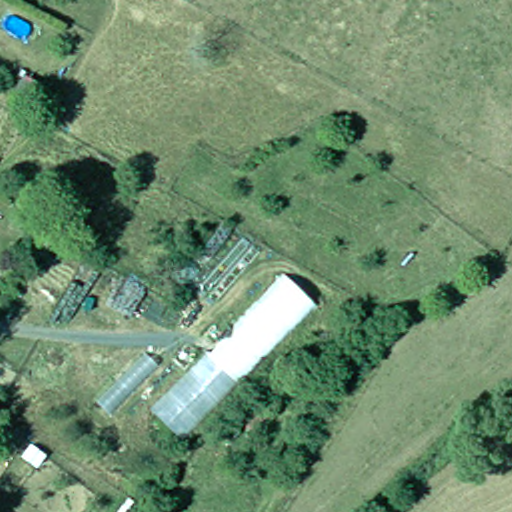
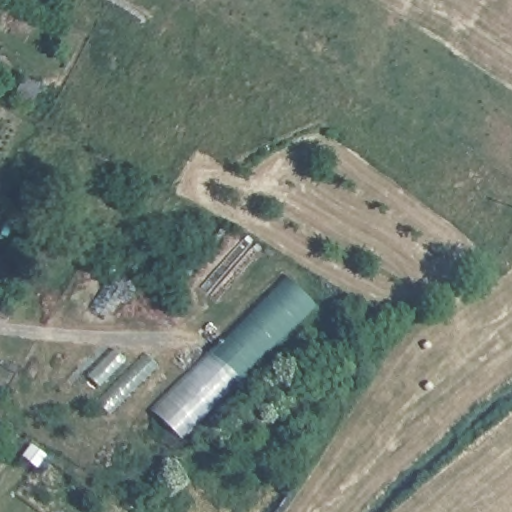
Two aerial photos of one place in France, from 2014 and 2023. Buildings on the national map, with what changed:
unchanged [(12,108),(0,101),(0,95),(13,76),(27,85),(12,108)]
unchanged [(187,446),(153,416),(278,275),(312,305),(187,446)]

